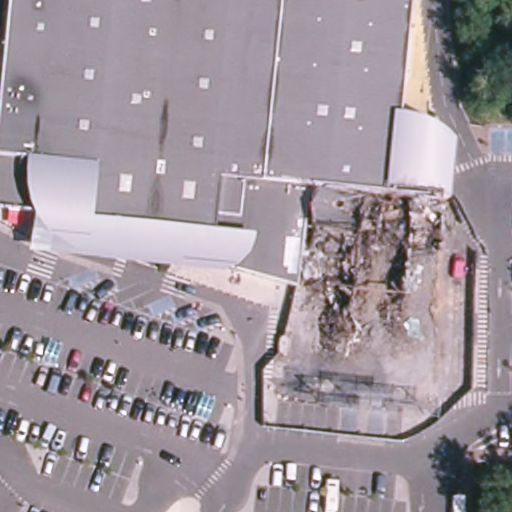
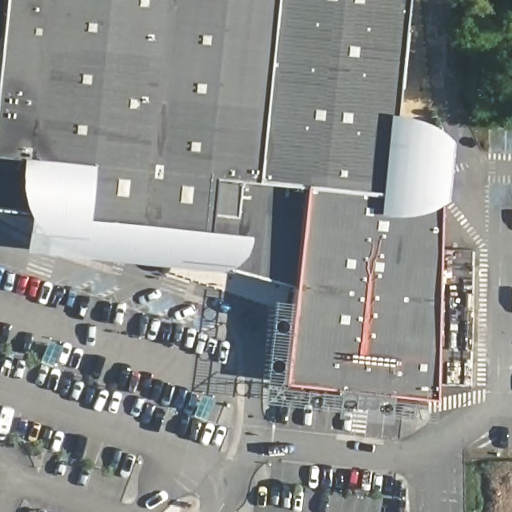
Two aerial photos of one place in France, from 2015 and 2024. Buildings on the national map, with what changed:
unchanged [(272,183),(303,187),(300,227),(295,286),(230,270),(25,252),(31,210),(0,207),(0,34),(3,0),(276,0),(257,182),(272,183)]
unchanged [(420,119),(432,124),(445,134),(451,139),(445,199),(440,202),(362,194),(355,233),(300,227),(303,187),(272,183),(257,182),(276,0),(408,0),(397,113),(420,119)]
new [(300,227),(355,233),(362,194),(440,202),(436,397),(285,382),(295,286),(300,227)]

